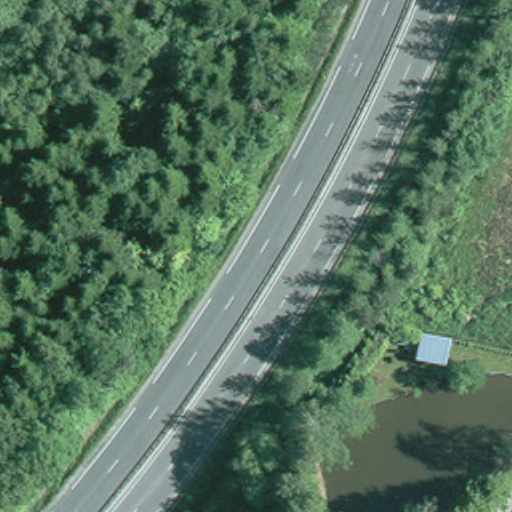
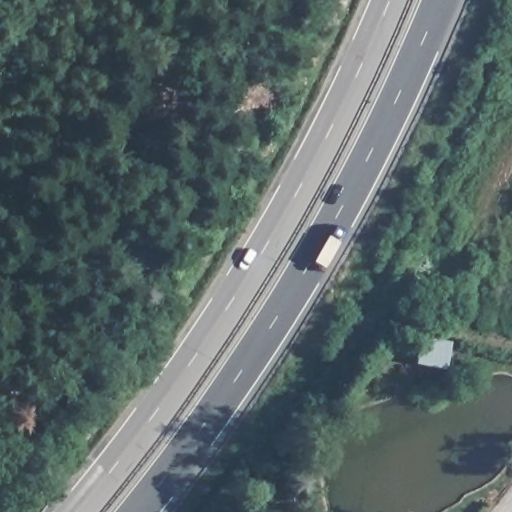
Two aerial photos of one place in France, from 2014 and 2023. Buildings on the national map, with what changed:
unchanged [(417,364),(422,336),(450,342),(438,369),(417,364)]

